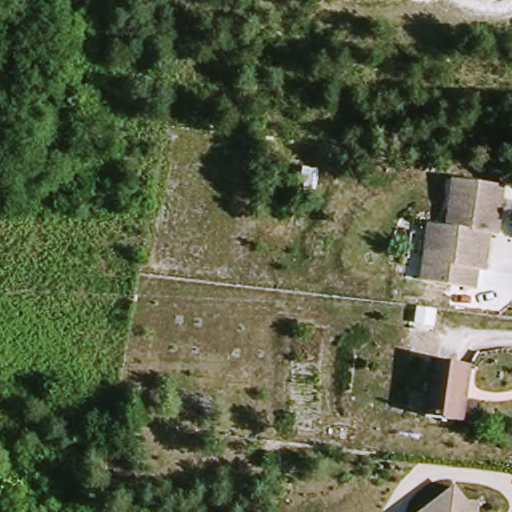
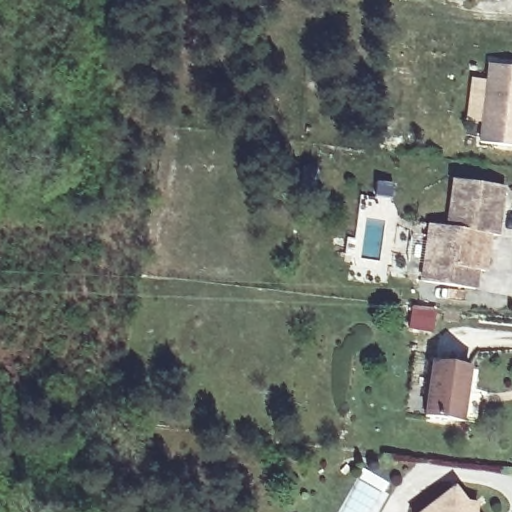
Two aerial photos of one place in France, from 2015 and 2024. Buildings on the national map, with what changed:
new [(488,66),(512,69),(512,147),(480,143),(488,66)]
unchanged [(490,275),(483,274),(480,293),(428,285),(433,246),(436,229),(449,231),(454,231),(459,184),(509,190),(503,239),(495,238),(494,249),(490,275)]
new [(411,307),(434,311),(431,333),(408,329),(411,307)]
unchanged [(463,418),(427,413),(434,359),(471,364),(463,418)]
unchanged [(417,512),(453,484),(467,499),(476,499),(474,510),(475,512),(417,512)]

